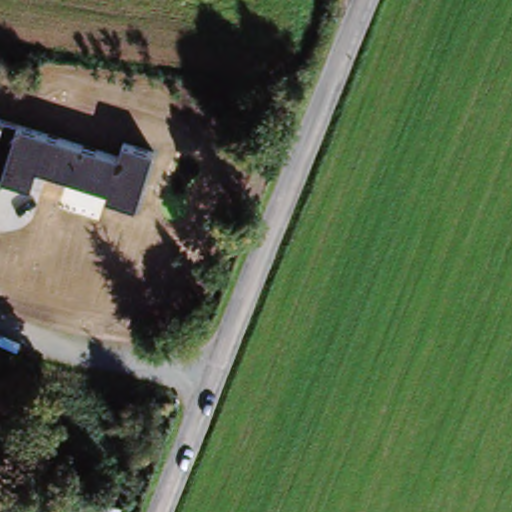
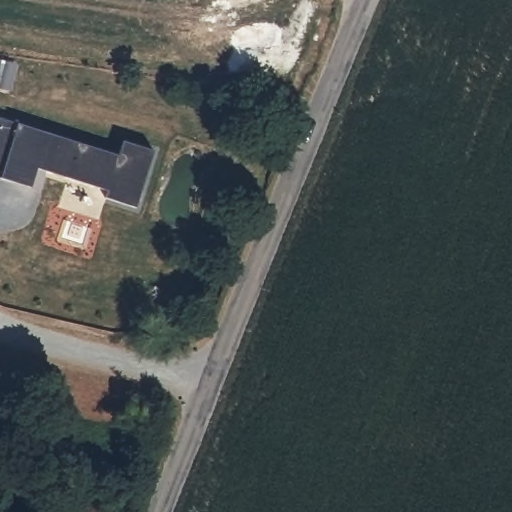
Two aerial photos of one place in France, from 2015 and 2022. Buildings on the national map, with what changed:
unchanged [(119,152),(123,138),(155,147),(135,205),(106,197),(110,188),(37,167),(32,187),(0,177),(0,176),(0,115),(16,121),(119,152)]
unchanged [(75,512),(85,492),(121,507),(119,512),(75,512)]

